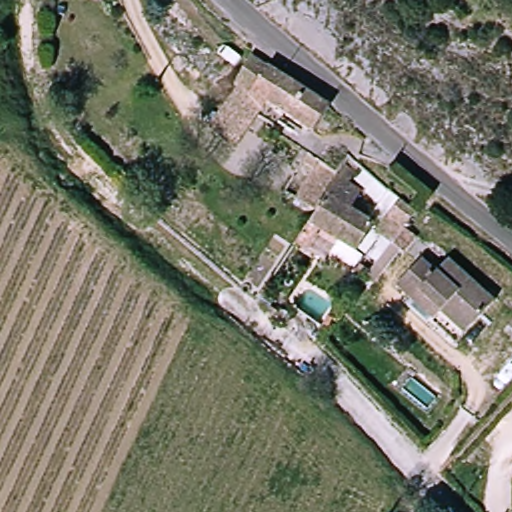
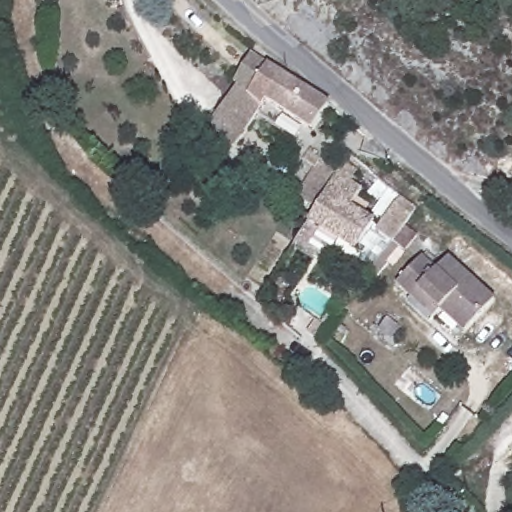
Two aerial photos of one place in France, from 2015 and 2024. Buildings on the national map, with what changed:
unchanged [(236,83),(256,55),(335,108),(318,135),(274,106),(256,93),(254,96),(241,87),(236,83)]
unchanged [(254,96),(256,93),(274,106),(236,143),(206,122),(241,87),(254,96)]
unchanged [(341,174),(337,181),(318,213),(300,201),(319,172),(308,165),(313,156),(324,163),(328,166),(337,151),(352,160),(354,157),(364,166),(349,189),(361,197),(351,213),(375,228),(358,256),(320,234),(309,251),(300,245),(310,228),(339,182),(341,174)]
unchanged [(376,234),(383,225),(372,217),(382,203),(359,182),(367,169),(391,191),(416,215),(394,246),(376,234)]
unchanged [(416,300),(400,287),(425,259),(440,273),(452,259),(499,301),(469,333),(445,312),(438,320),(416,300)]

